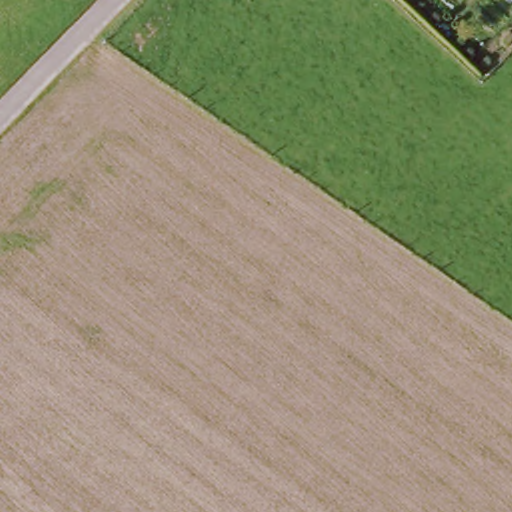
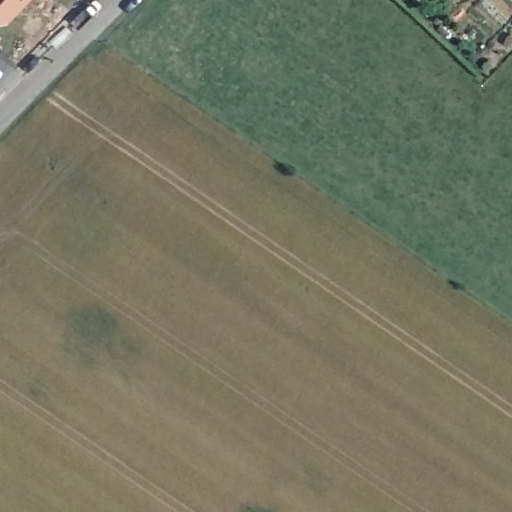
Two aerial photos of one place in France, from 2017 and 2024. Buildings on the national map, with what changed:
new [(10,20),(0,21),(0,0),(29,0),(10,20)]

